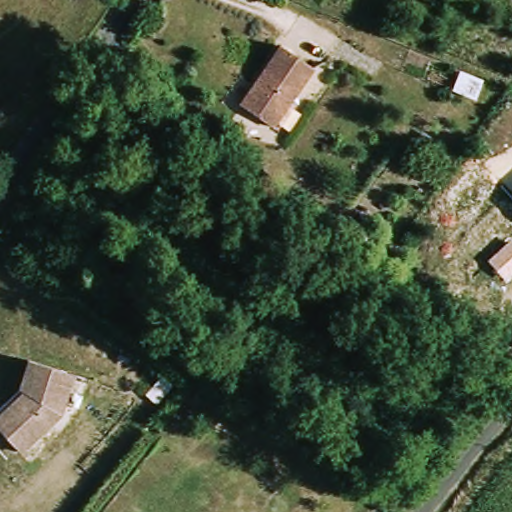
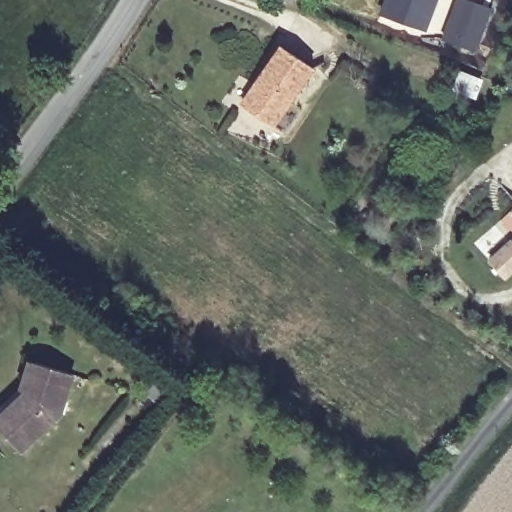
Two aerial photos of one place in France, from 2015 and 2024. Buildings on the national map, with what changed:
new [(381,14),(386,0),(441,0),(429,32),(381,14)]
new [(469,0),(494,10),(474,59),(439,41),(453,0),(469,0)]
unchanged [(246,107),(261,84),(259,80),(284,43),(299,53),(316,65),(281,121),(278,126),(246,107)]
new [(459,69),(484,80),(475,101),(449,90),(459,69)]
unchanged [(512,262),(512,282),(502,271),(512,262)]
unchanged [(65,420),(25,458),(0,432),(0,417),(27,390),(34,365),(41,367),(78,379),(65,420)]

